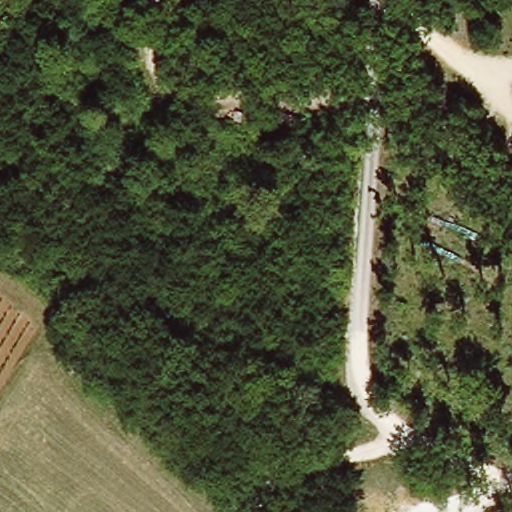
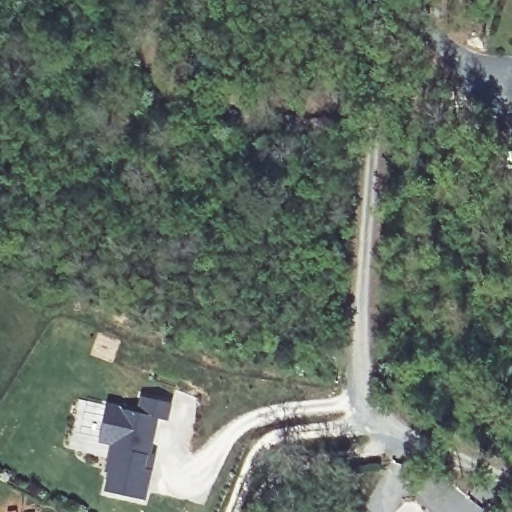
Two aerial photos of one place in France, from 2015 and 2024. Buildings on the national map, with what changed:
new [(150,471),(143,501),(106,493),(110,475),(105,473),(111,445),(98,441),(105,407),(138,415),(142,398),(170,405),(166,421),(156,419),(148,455),(153,456),(150,471)]

